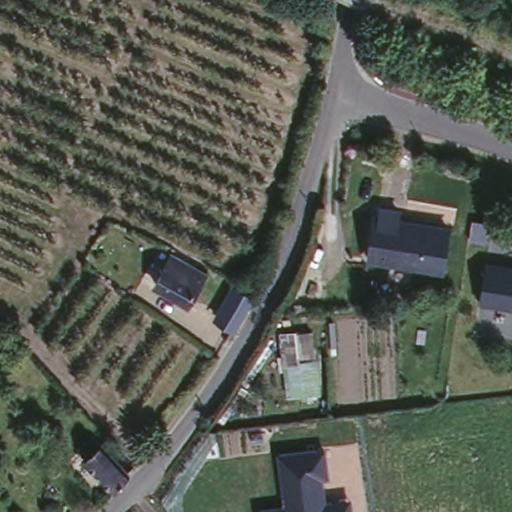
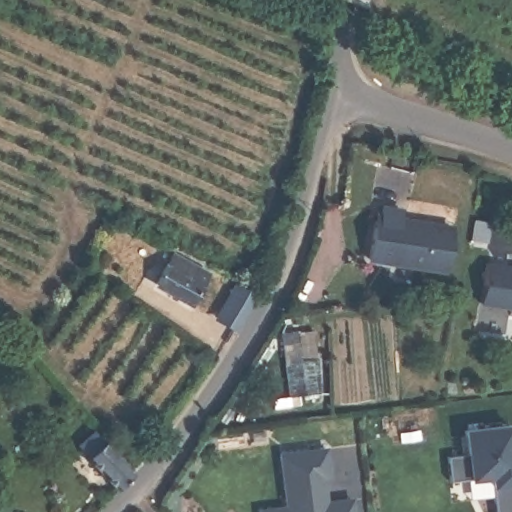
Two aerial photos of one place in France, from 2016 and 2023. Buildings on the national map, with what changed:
unchanged [(446,270),(370,257),(377,215),(450,227),(446,270)]
unchanged [(512,261),(512,307),(478,300),(485,256),(512,261)]
unchanged [(206,277),(188,308),(153,288),(172,257),(206,277)]
unchanged [(235,329),(234,330),(216,320),(233,292),(250,302),(235,329)]
unchanged [(281,332),(299,331),(300,335),(314,333),(321,396),(288,398),(281,332)]
new [(512,449),(512,512),(494,512),(492,485),(453,490),(451,453),(462,452),(462,427),(510,425),(512,449)]
unchanged [(93,456),(96,454),(87,444),(102,431),(137,471),(136,473),(121,488),(93,456)]
unchanged [(330,477),(323,478),(325,498),(351,495),(353,512),(257,512),(256,507),(282,505),(276,448),(326,442),(330,477)]

